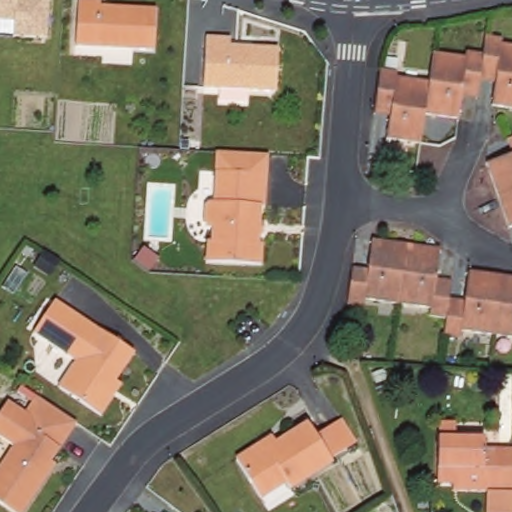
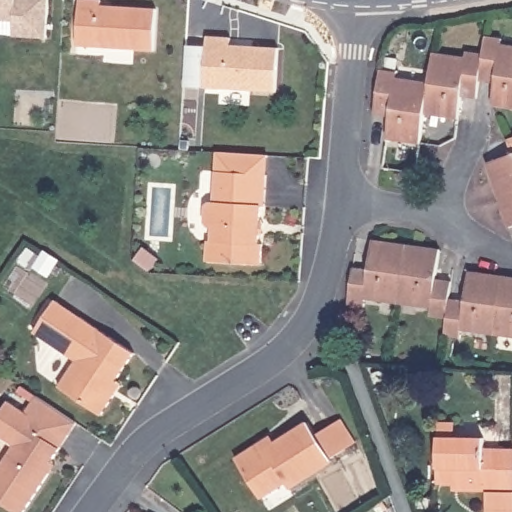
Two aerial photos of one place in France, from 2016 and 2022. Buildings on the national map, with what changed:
unchanged [(43,40),(13,39),(14,22),(0,22),(0,0),(44,0),(43,40)]
unchanged [(98,5),(152,6),(151,46),(74,44),(74,0),(98,0),(98,5)]
unchanged [(392,71),(391,79),(423,82),(427,52),(460,55),(461,50),(477,52),(479,35),(498,37),(497,44),(512,45),(512,107),(491,104),(486,104),(489,81),(476,80),(474,98),(456,96),(454,117),(419,114),(416,144),(383,140),(386,115),(369,114),(374,70),(392,71)]
unchanged [(229,39),(229,50),(276,51),(275,94),(202,90),(204,38),(229,39)]
unchanged [(509,155),(504,139),(512,136),(512,229),(507,230),(483,165),(509,155)]
unchanged [(203,199),(209,199),(209,181),(226,182),(226,172),(227,150),(259,152),(258,174),(257,208),(252,208),(250,244),(254,244),(253,265),(200,263),(200,243),(203,243),(204,228),(196,222),(196,205),(203,199)]
unchanged [(367,268),(371,240),(377,241),(427,249),(437,251),(432,280),(447,283),(444,300),(459,302),(464,275),(512,283),(512,342),(488,338),(454,333),(453,340),(434,336),(436,320),(420,318),(422,308),(390,303),(361,298),(359,306),(344,304),(351,266),(367,268)]
unchanged [(34,332),(56,300),(131,352),(113,380),(122,386),(101,417),(58,387),(76,361),(34,332)]
unchanged [(0,404),(4,399),(21,410),(31,396),(74,426),(49,463),(54,466),(23,512),(8,512),(0,507),(0,462),(11,446),(0,439),(0,404)]
unchanged [(275,498),(248,453),(291,427),(295,433),(310,425),(333,460),(275,498)]
unchanged [(481,433),(481,444),(512,444),(512,487),(459,486),(459,480),(437,480),(437,433),(481,433)]

